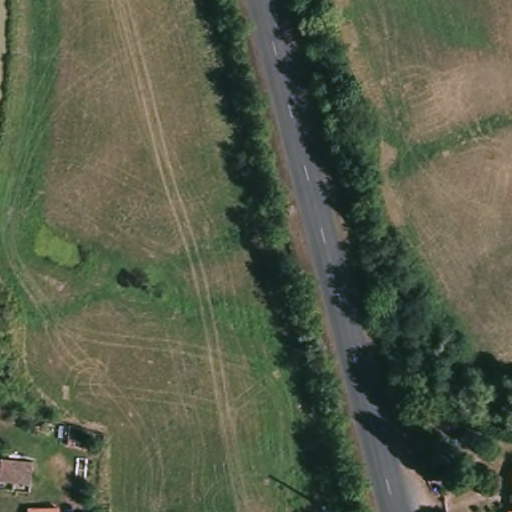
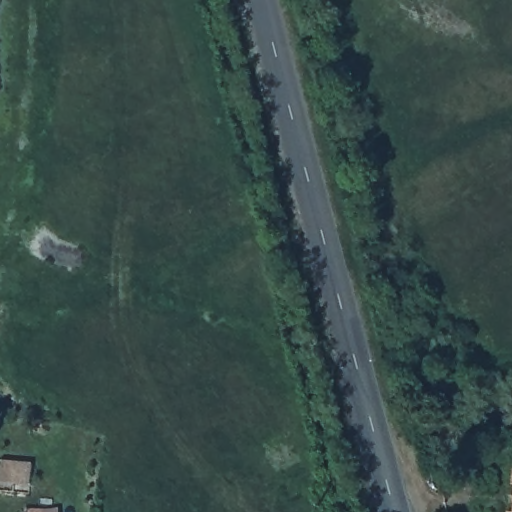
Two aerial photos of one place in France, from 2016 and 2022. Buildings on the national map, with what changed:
unchanged [(30,465),(28,488),(0,485),(0,463),(30,465)]

